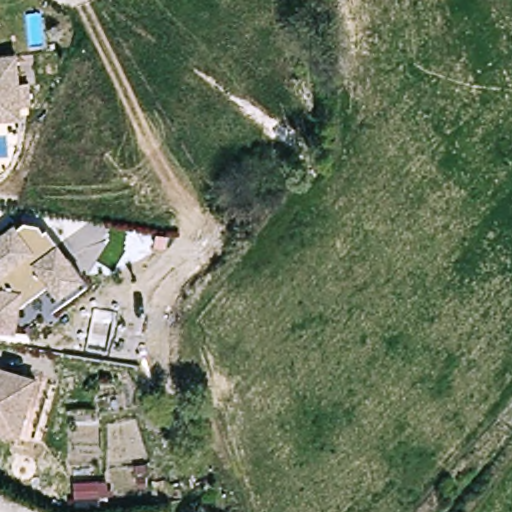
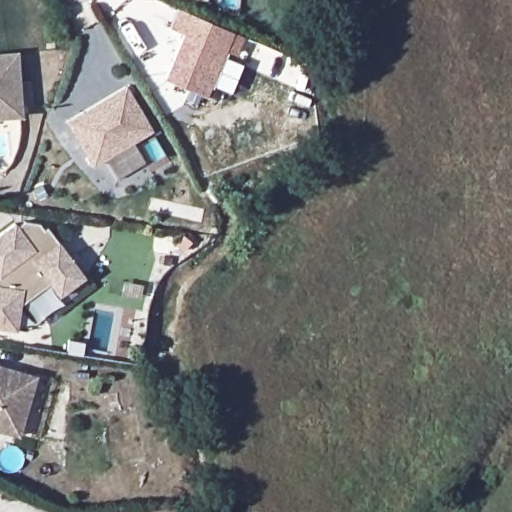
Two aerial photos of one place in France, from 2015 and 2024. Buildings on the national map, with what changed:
new [(205,97),(164,80),(183,34),(170,29),(179,8),(233,31),(205,97)]
unchanged [(14,52),(19,105),(19,114),(0,116),(0,53),(14,52)]
new [(92,166),(65,120),(126,85),(153,131),(92,166)]
unchanged [(16,224),(18,227),(26,221),(42,224),(45,229),(49,227),(60,244),(56,247),(64,260),(70,257),(85,279),(59,298),(50,283),(17,306),(14,332),(0,330),(0,235),(16,224)]
unchanged [(6,432),(0,431),(0,367),(37,378),(24,425),(20,437),(6,432)]

